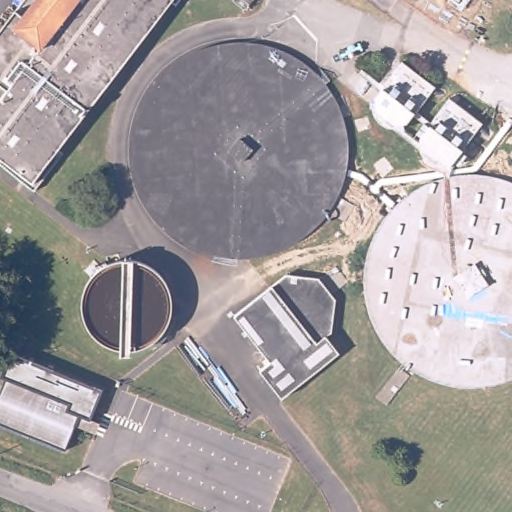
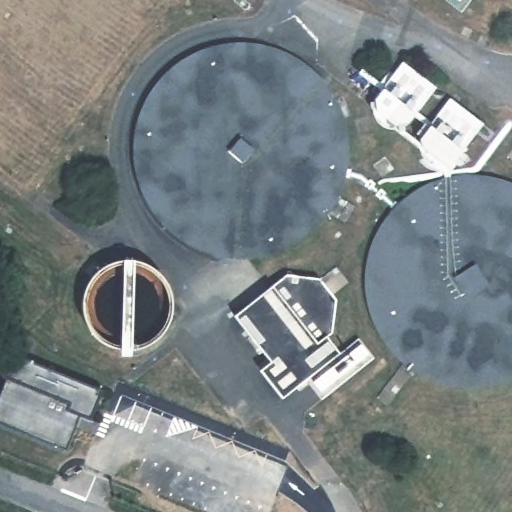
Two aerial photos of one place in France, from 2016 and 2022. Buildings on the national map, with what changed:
demolished [(180,0),(172,10),(167,6),(55,155),(60,159),(32,198),(0,173),(0,168),(1,166),(0,165),(0,33),(25,0),(180,0)]
unchanged [(235,0),(252,0),(245,9),(235,0)]
unchanged [(485,120),(449,171),(371,108),(405,61),(485,120)]
unchanged [(283,275),(317,279),(332,299),(329,333),(323,338),(335,354),(278,399),(255,371),(266,362),(231,317),(283,275)]
new [(356,346),(364,356),(322,389),(314,379),(356,346)]
unchanged [(103,391),(91,422),(78,417),(66,450),(0,425),(0,387),(12,357),(103,391)]

